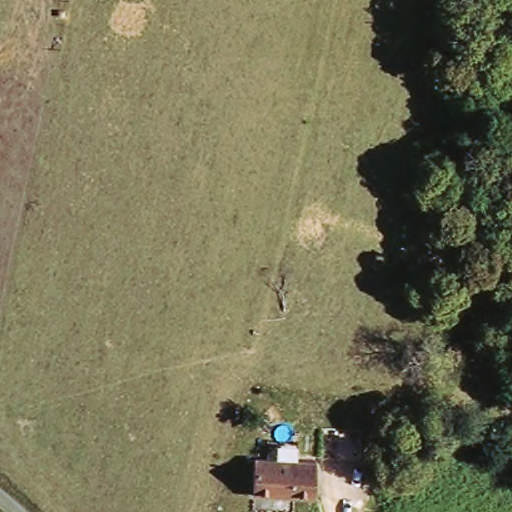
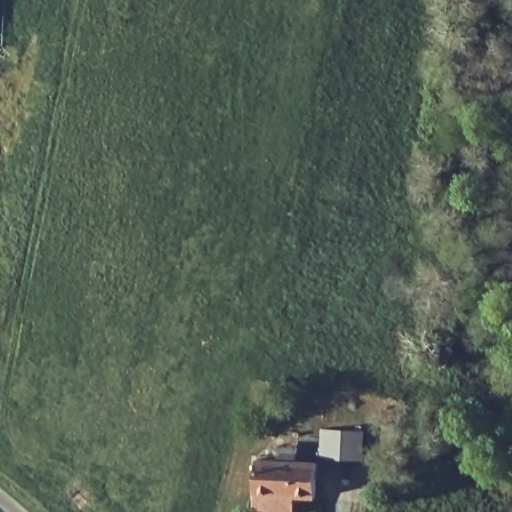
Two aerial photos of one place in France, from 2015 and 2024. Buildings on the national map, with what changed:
new [(362,460),(319,458),(321,429),(363,432),(362,460)]
unchanged [(288,492),(288,506),(272,506),(247,504),(247,457),(276,456),(310,457),(310,468),(308,494),(288,492)]

